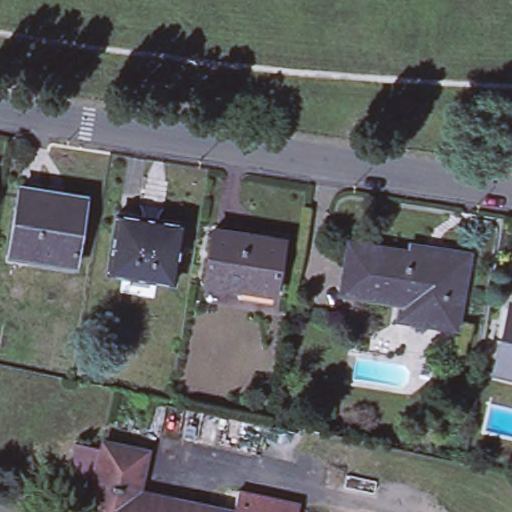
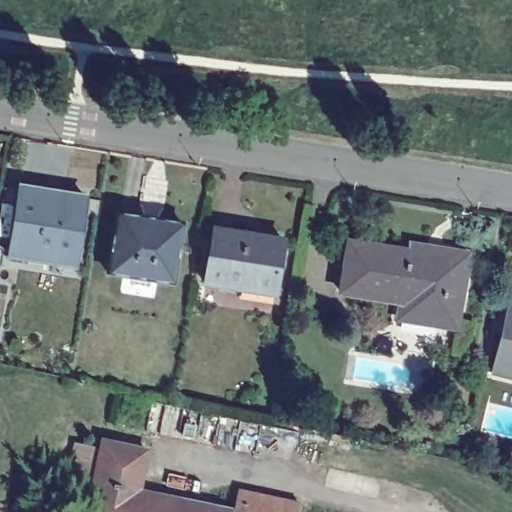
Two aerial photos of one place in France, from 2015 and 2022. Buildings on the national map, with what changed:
unchanged [(73,268),(9,258),(20,191),(84,201),(73,268)]
unchanged [(172,287),(107,277),(116,217),(181,228),(172,287)]
unchanged [(283,244),(274,299),(205,287),(215,233),(283,244)]
unchanged [(341,297),(350,247),(397,255),(390,305),(341,297)]
unchanged [(397,255),(410,257),(411,249),(468,258),(455,332),(398,323),(401,307),(390,305),(397,255)]
unchanged [(512,319),(512,336),(508,335),(512,319)]
unchanged [(508,335),(512,336),(512,368),(500,366),(508,335)]
unchanged [(148,453),(139,494),(232,512),(89,512),(95,482),(70,477),(76,446),(102,451),(103,443),(148,453)]
unchanged [(238,492),(301,504),(299,512),(235,512),(238,492)]

